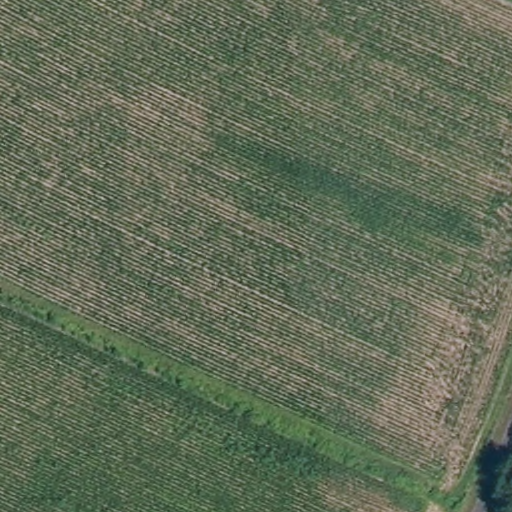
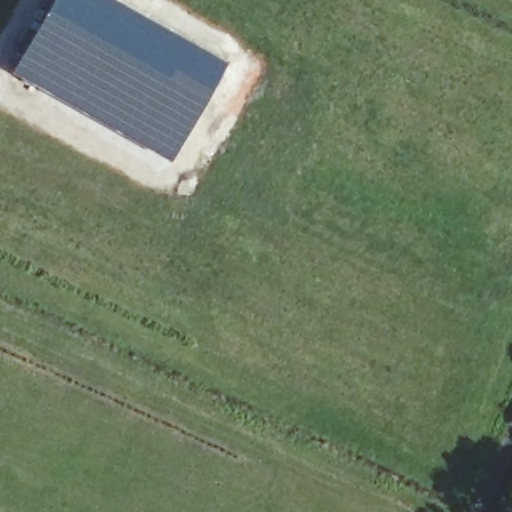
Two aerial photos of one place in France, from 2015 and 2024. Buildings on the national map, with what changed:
new [(51,0),(116,0),(220,60),(218,65),(221,66),(170,160),(85,114),(10,72),(51,0)]

